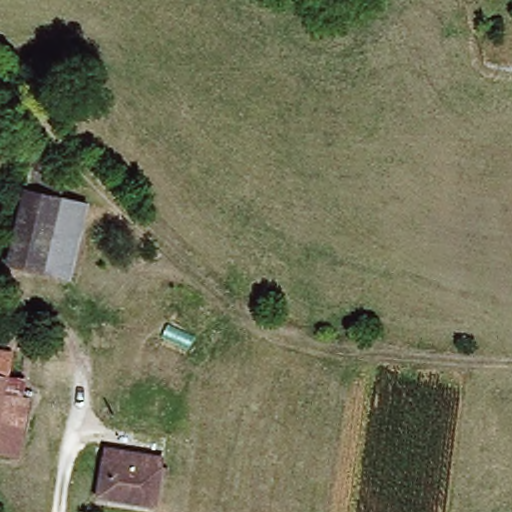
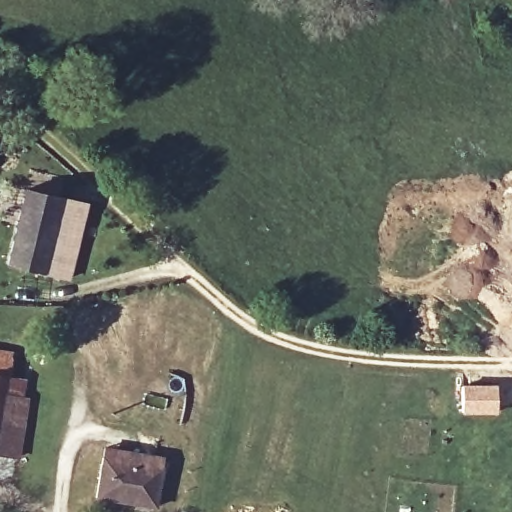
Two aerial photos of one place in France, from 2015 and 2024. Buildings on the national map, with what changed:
unchanged [(67,182),(60,203),(80,210),(53,281),(1,263),(35,170),(67,182)]
unchanged [(5,358),(0,387),(0,357),(5,358)]
new [(498,384),(499,409),(464,410),(463,385),(498,384)]
unchanged [(19,403),(8,461),(0,459),(0,400),(19,403)]
unchanged [(165,464),(149,512),(147,512),(92,498),(104,449),(165,464)]

